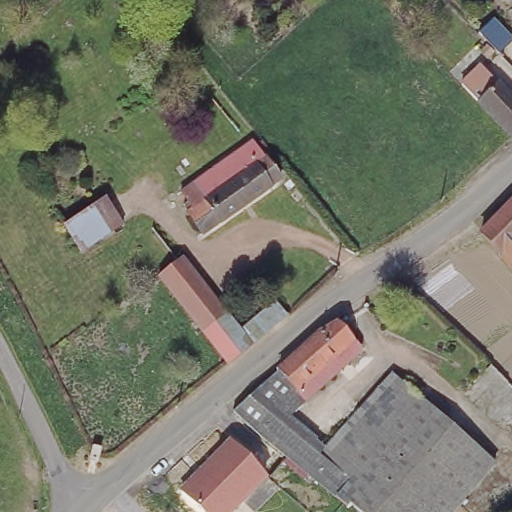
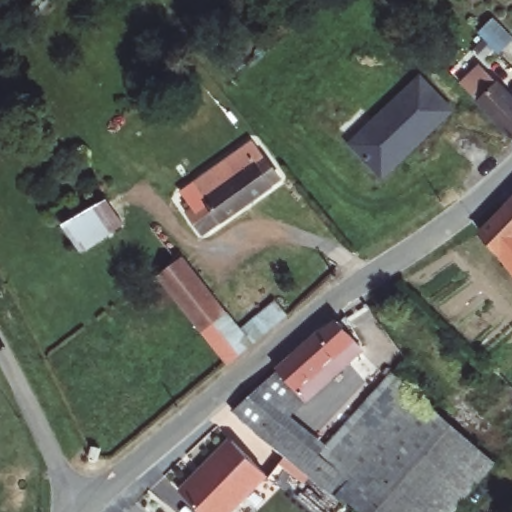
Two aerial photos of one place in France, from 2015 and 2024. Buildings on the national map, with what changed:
unchanged [(497,45),(480,27),(490,18),(510,39),(500,47),(497,45)]
unchanged [(460,76),(478,57),(512,91),(512,126),(510,127),(460,76)]
new [(347,145),(420,74),(455,111),(382,180),(347,145)]
unchanged [(206,196),(195,179),(230,154),(250,141),(261,157),(265,155),(280,176),(270,184),(220,217),(203,230),(188,208),(206,196)]
unchanged [(498,246),(480,225),(512,192),(512,232),(498,246)]
unchanged [(100,203),(113,228),(70,253),(55,229),(100,203)]
unchanged [(512,232),(512,262),(498,246),(512,232)]
unchanged [(278,317),(240,347),(241,347),(219,364),(149,276),(171,259),(230,333),(267,303),(278,317)]
unchanged [(323,330),(325,328),(342,318),(362,341),(366,347),(294,408),(285,398),(273,408),(254,425),(237,407),(268,380),(282,367),(323,330)]
demolished [(510,382),(482,415),(465,397),(493,365),(511,381),(510,382)]
unchanged [(362,512),(350,502),(308,469),(295,458),(254,425),(273,408),(310,440),(325,452),(398,371),(463,432),(495,461),(448,512),(362,512)]
demolished [(482,415),(510,382),(512,383),(512,444),(482,415)]
unchanged [(234,512),(202,512),(180,491),(230,440),(268,478),(234,512)]
unchanged [(92,446),(101,448),(97,462),(90,460),(92,446)]

